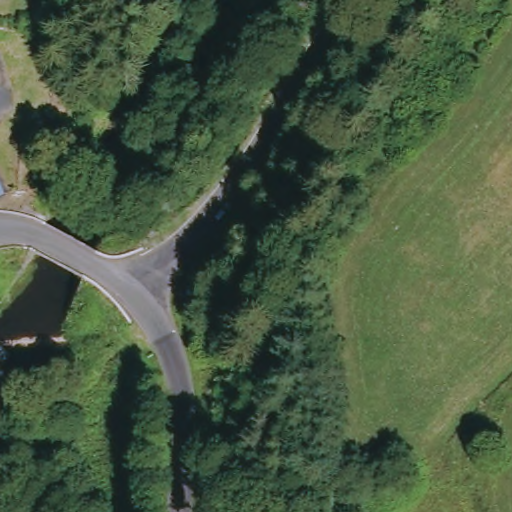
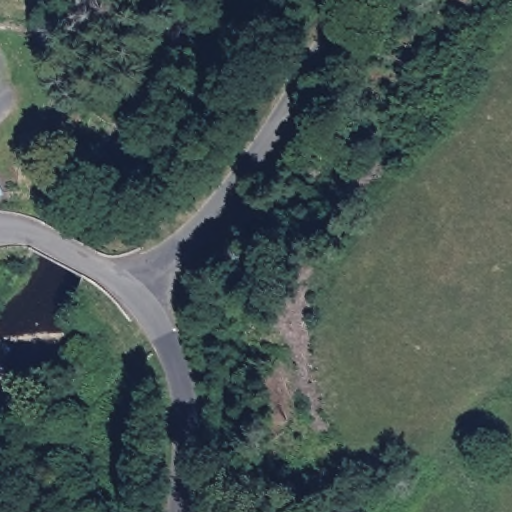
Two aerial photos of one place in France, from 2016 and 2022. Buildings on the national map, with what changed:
unchanged [(0,201),(0,162),(15,194),(0,201)]

